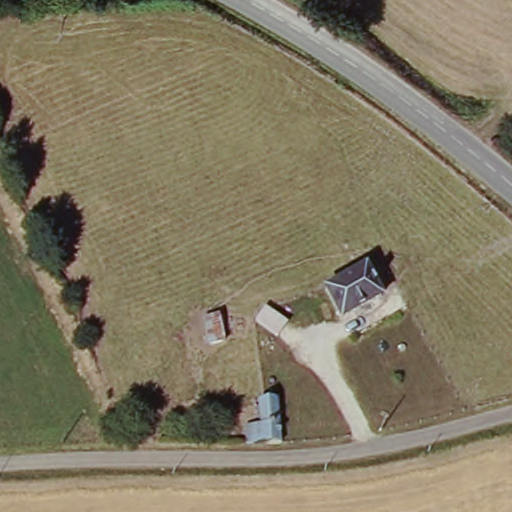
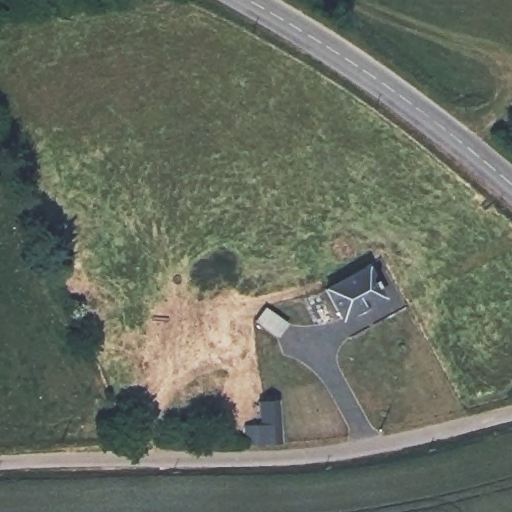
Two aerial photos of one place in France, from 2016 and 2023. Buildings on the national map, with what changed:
unchanged [(367,264),(385,295),(343,317),(342,318),(324,287),(367,264)]
unchanged [(268,311),(276,337),(219,350),(214,324),(268,311)]
unchanged [(246,431),(267,425),(265,406),(282,404),(288,448),(246,448),(246,431)]

